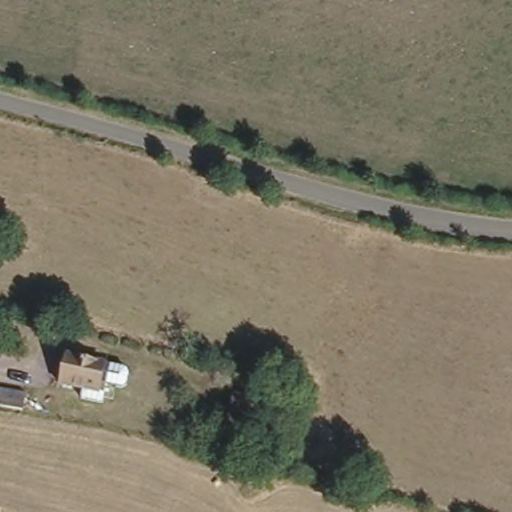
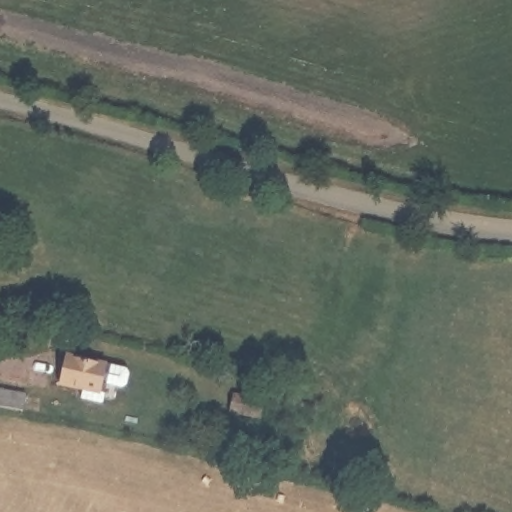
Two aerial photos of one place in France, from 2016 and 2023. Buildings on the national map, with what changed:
unchanged [(97,402),(76,397),(78,388),(55,384),(61,355),(99,362),(94,382),(101,384),(97,402)]
unchanged [(0,406),(0,388),(30,393),(27,410),(0,406)]
unchanged [(245,411),(249,394),(279,401),(275,418),(245,411)]

